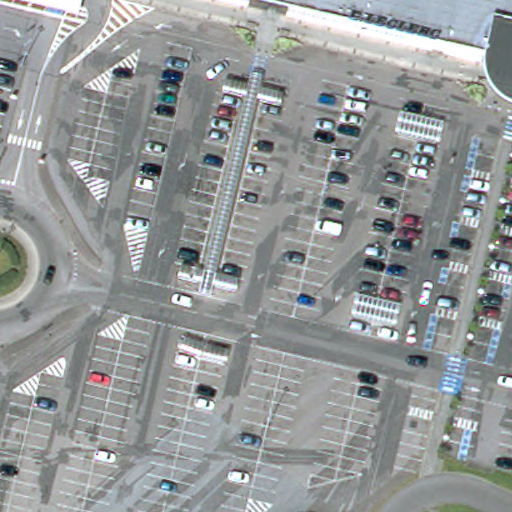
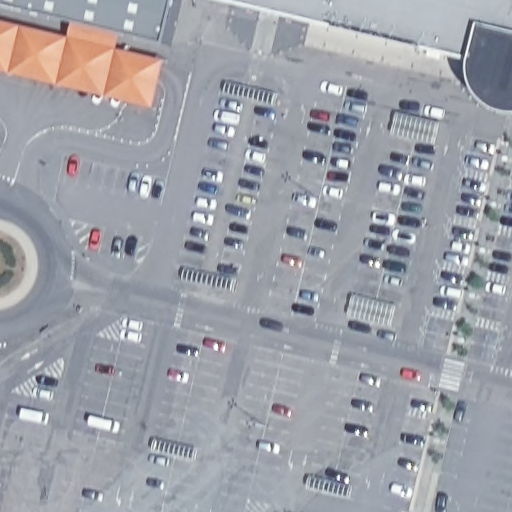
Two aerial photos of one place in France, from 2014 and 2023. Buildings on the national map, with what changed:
new [(0,76),(0,0),(181,0),(155,112),(0,76)]
unchanged [(430,49),(227,0),(512,0),(512,68),(480,60),(442,51),(441,57),(430,55),(430,49)]
unchanged [(512,112),(506,110),(500,108),(495,105),(491,100),(487,95),(484,90),(482,85),(480,79),(479,73),(479,66),(480,60),(512,68),(512,113),(512,112)]

